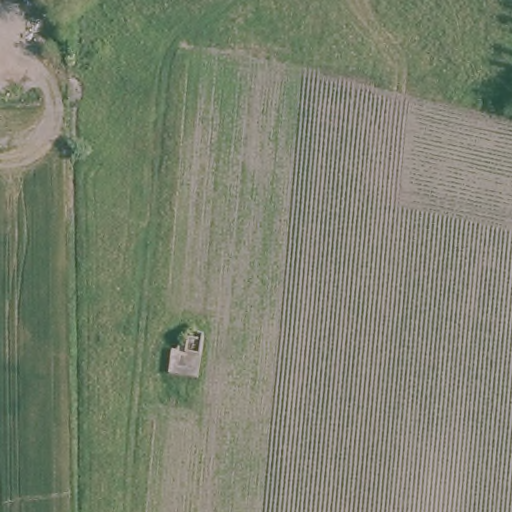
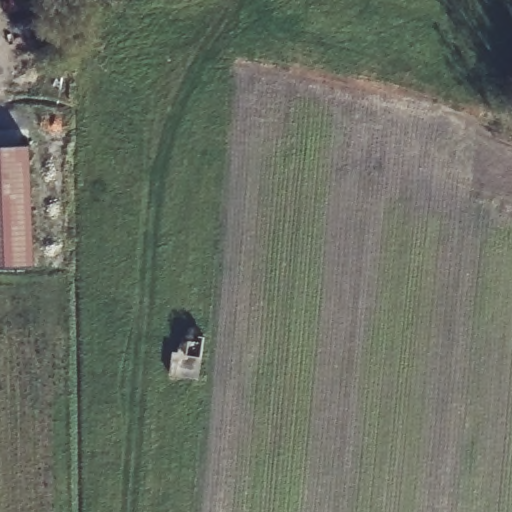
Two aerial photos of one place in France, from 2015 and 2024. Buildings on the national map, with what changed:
new [(0,147),(29,145),(34,264),(0,266),(0,147)]
unchanged [(162,373),(169,345),(179,347),(183,335),(201,337),(191,379),(162,373)]

